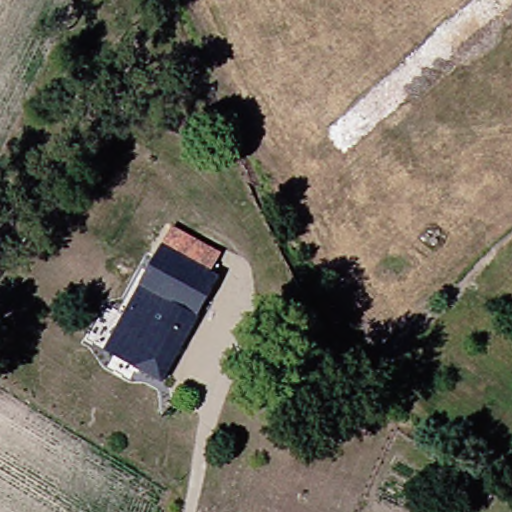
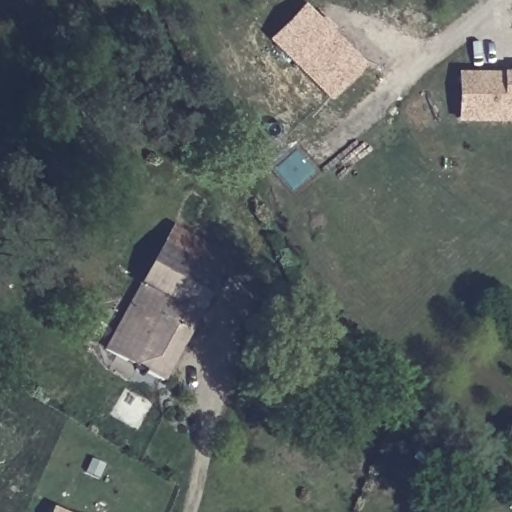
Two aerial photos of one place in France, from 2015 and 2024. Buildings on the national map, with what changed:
new [(268,39),(305,1),(367,63),(328,99),(268,39)]
new [(459,73),(512,74),(512,125),(458,124),(459,73)]
unchanged [(97,348),(153,247),(179,260),(191,238),(222,258),(211,280),(153,380),(97,348)]
new [(72,512),(55,512),(58,505),(72,512)]

